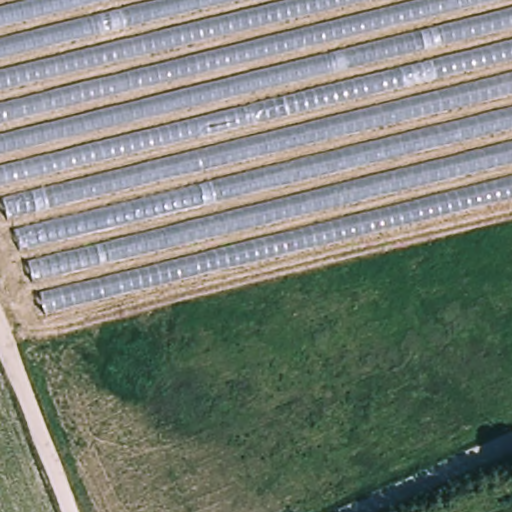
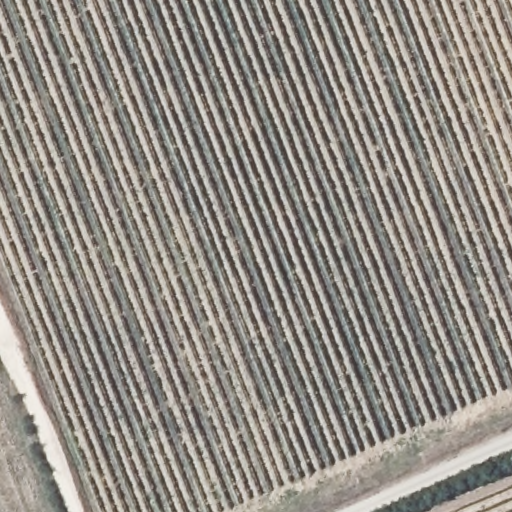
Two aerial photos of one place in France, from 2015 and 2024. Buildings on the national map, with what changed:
demolished [(0,0),(512,0),(512,194),(42,309),(0,191),(0,0)]

